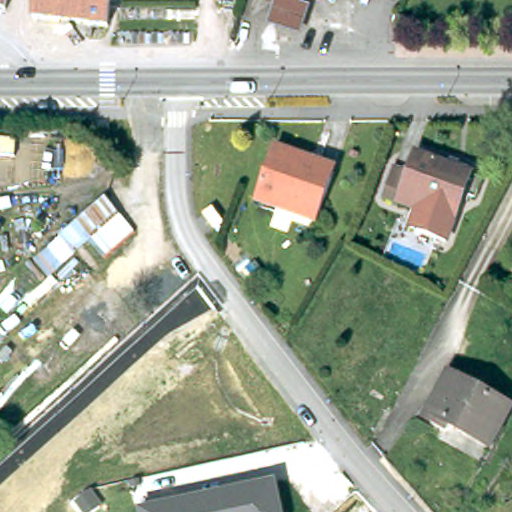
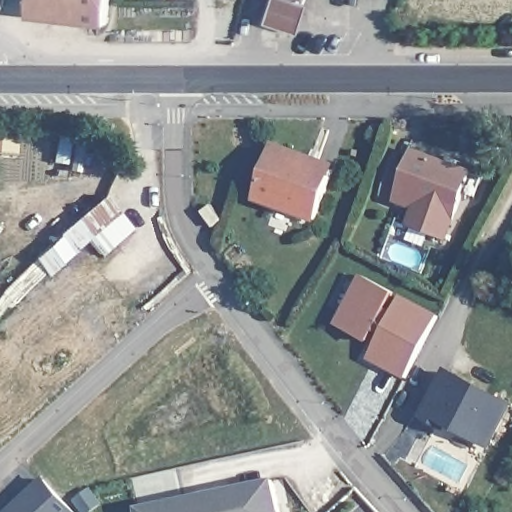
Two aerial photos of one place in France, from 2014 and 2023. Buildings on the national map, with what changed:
unchanged [(4,2),(0,1),(0,0),(5,0),(4,2)]
unchanged [(29,5),(30,0),(107,0),(104,15),(29,5)]
unchanged [(304,1),(300,0),(304,0),(304,1)]
unchanged [(218,23),(219,15),(220,9),(230,10),(228,24),(218,23)]
unchanged [(252,195),(271,142),(306,155),(305,159),(331,168),(328,175),(313,218),(252,195)]
unchanged [(392,194),(376,185),(392,159),(407,167),(416,152),(417,153),(444,167),(447,162),(455,167),(453,172),(466,180),(448,214),(416,197),(411,204),(392,194)]
new [(439,315),(404,381),(366,361),(374,346),(334,325),(361,274),(439,315)]
unchanged [(507,405),(483,442),(443,416),(439,421),(423,410),(421,408),(447,366),(450,368),(507,405)]
new [(5,512),(43,476),(74,512),(5,512)]
unchanged [(282,512),(141,512),(141,508),(274,484),(282,512)]

